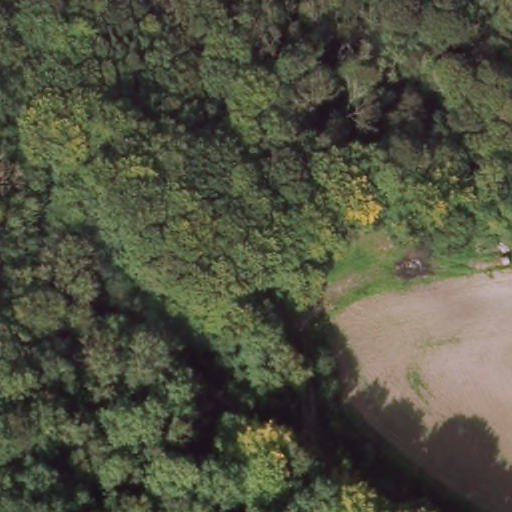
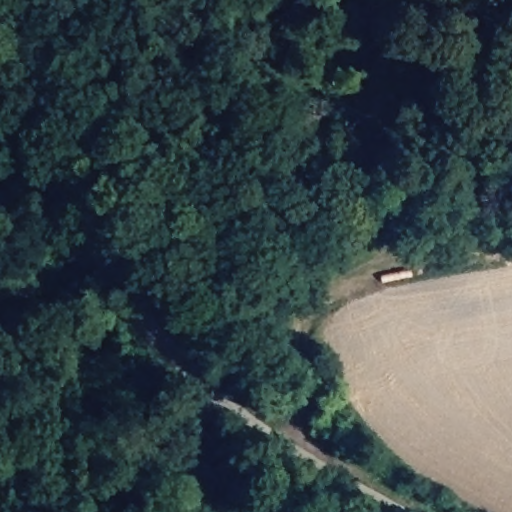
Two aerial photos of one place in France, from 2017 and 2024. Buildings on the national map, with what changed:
unchanged [(260,282),(289,259),(349,215),(357,225),(367,238),(280,304),(265,287),(260,282)]

